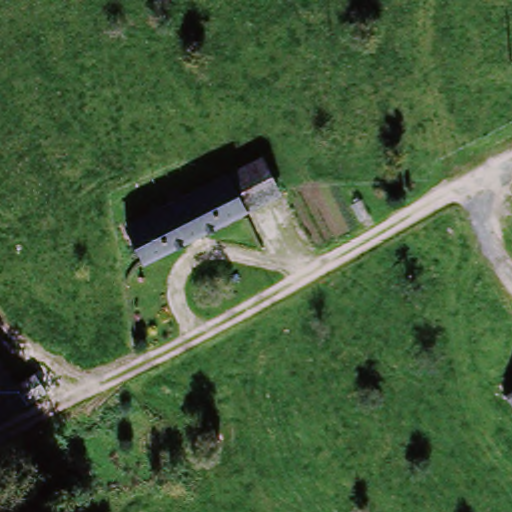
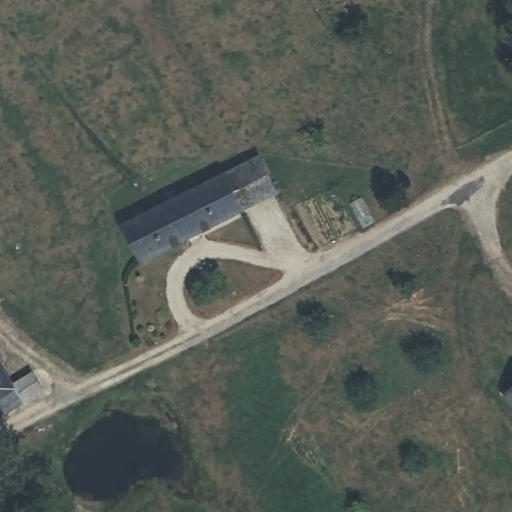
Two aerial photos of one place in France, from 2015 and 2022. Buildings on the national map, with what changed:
unchanged [(227,174),(264,155),(281,190),(243,208),(227,174)]
unchanged [(145,255),(128,222),(227,174),(243,208),(145,255)]
unchanged [(0,353),(17,381),(26,396),(0,410),(0,353)]
unchanged [(501,382),(512,375),(512,398),(501,382)]

